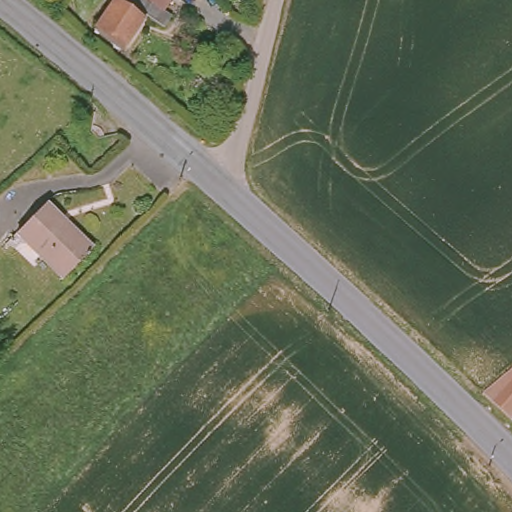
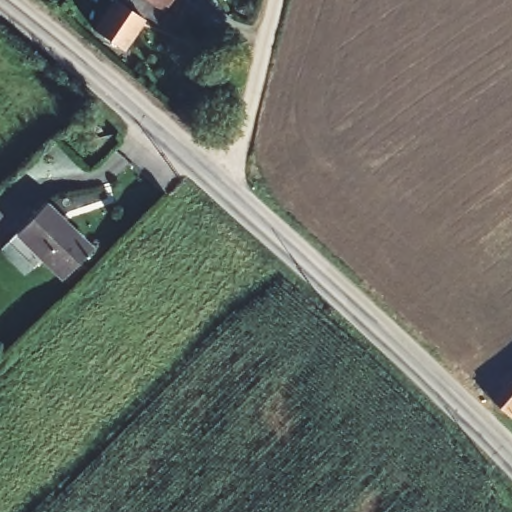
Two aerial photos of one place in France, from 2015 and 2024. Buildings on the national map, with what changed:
unchanged [(165,32),(146,19),(123,54),(97,34),(119,0),(187,0),(165,32)]
unchanged [(82,124),(92,125),(95,129),(97,136),(98,141),(95,148),(88,152),(79,152),(74,149),(70,142),(69,135),(73,127),(82,124)]
unchanged [(15,230),(45,202),(90,249),(61,277),(15,230)]
unchanged [(512,418),(484,394),(512,373),(512,418)]

